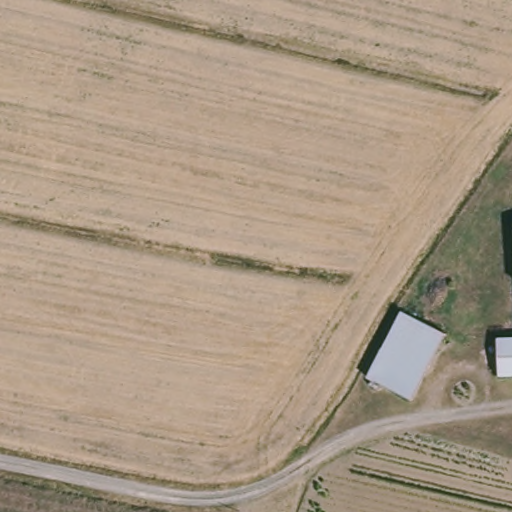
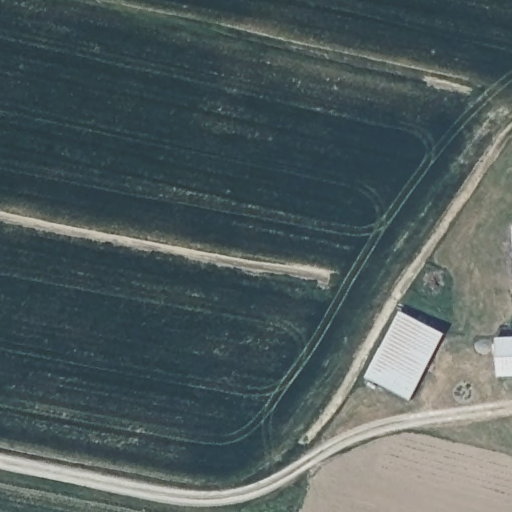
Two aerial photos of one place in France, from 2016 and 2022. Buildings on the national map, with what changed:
unchanged [(428,325),(415,344),(387,387),(370,377),(406,312),(428,325)]
unchanged [(448,336),(412,401),(387,387),(415,344),(428,325),(448,336)]
unchanged [(499,341),(512,340),(512,380),(500,381),(499,341)]

